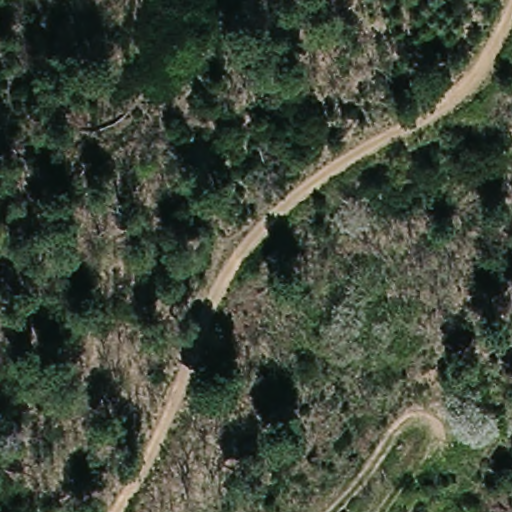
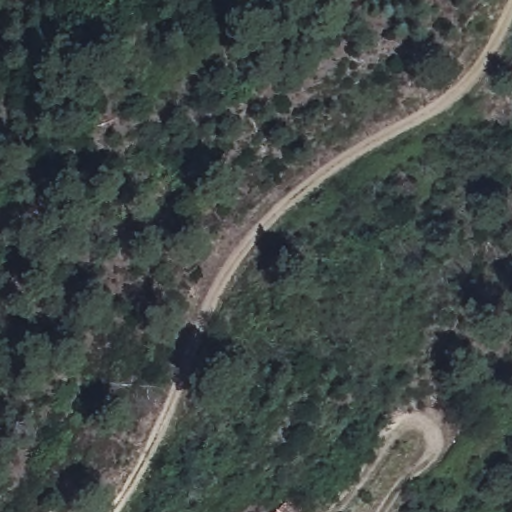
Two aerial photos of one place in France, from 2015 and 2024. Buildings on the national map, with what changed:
[]

